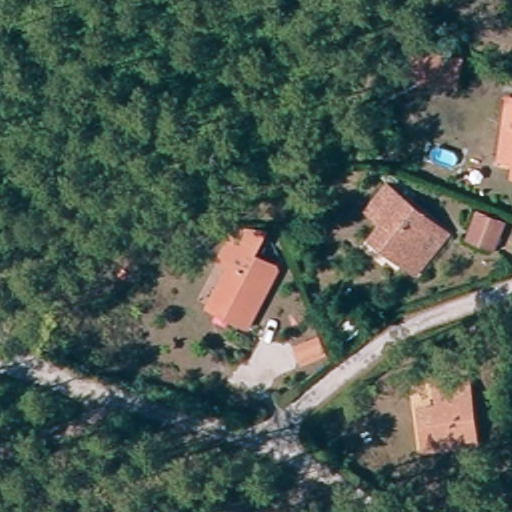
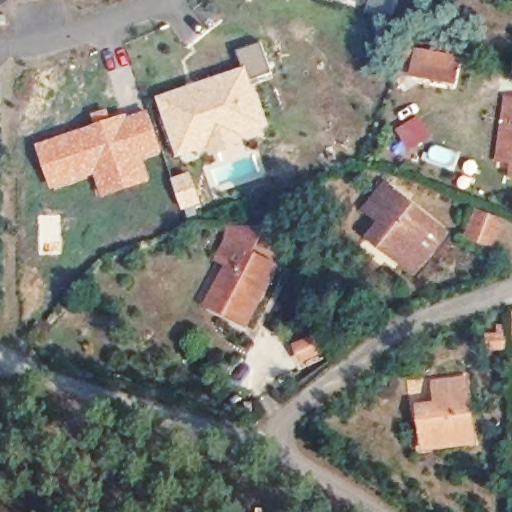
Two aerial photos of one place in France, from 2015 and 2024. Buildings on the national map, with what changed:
new [(240,136),(243,146),(213,159),(208,147),(178,157),(157,100),(242,71),(237,55),(261,46),(271,76),(250,82),(266,127),(240,136)]
unchanged [(457,61),(482,65),(477,89),(451,82),(457,61)]
unchanged [(506,116),(507,97),(512,98),(512,167),(501,166),(506,116)]
new [(92,124),(89,113),(107,107),(111,118),(147,109),(162,152),(144,159),(150,184),(99,200),(93,177),(50,192),(34,144),(92,124)]
new [(190,172),(201,207),(197,209),(199,215),(186,219),(171,179),(190,172)]
unchanged [(441,235),(408,272),(370,235),(383,221),(364,204),(388,184),(441,235)]
unchanged [(221,285),(231,262),(219,256),(231,228),(233,224),(263,224),(256,239),(251,250),(275,260),(273,265),(277,266),(252,323),(222,311),(211,306),(221,285)]
unchanged [(512,236),(512,250),(505,263),(483,252),(498,228),(512,236)]
unchanged [(512,365),(511,366),(511,346),(512,346),(512,365)]
unchanged [(413,412),(428,411),(435,410),(433,387),(446,386),(464,383),(472,446),(432,452),(418,453),(413,412)]
unchanged [(257,407),(261,421),(240,428),(235,413),(257,407)]

